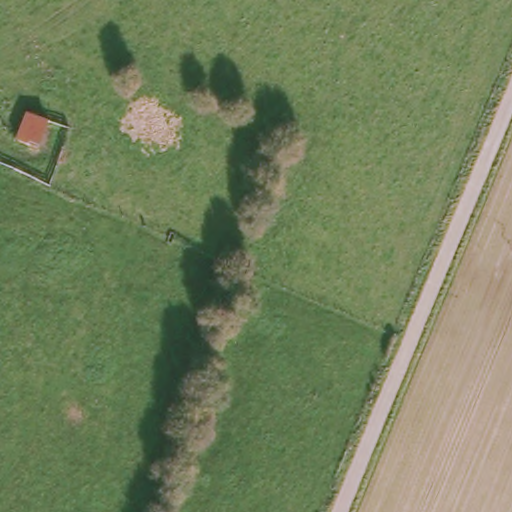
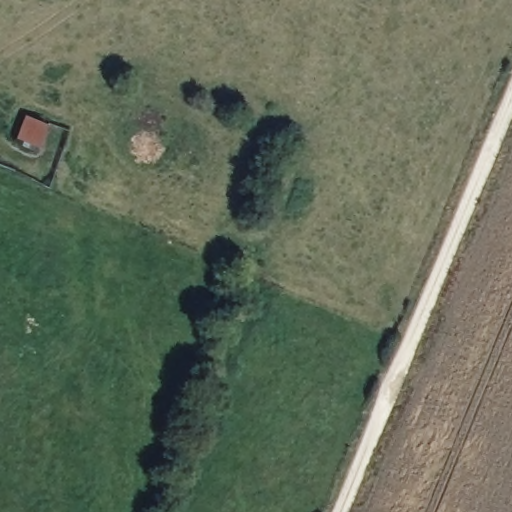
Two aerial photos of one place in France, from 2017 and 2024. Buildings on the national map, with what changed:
unchanged [(38,147),(14,139),(23,113),(45,121),(38,147)]

